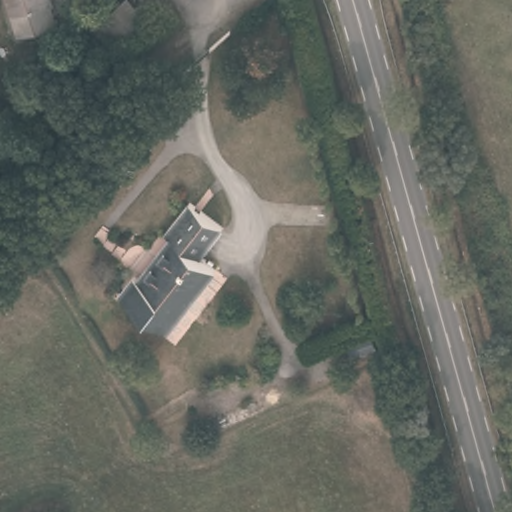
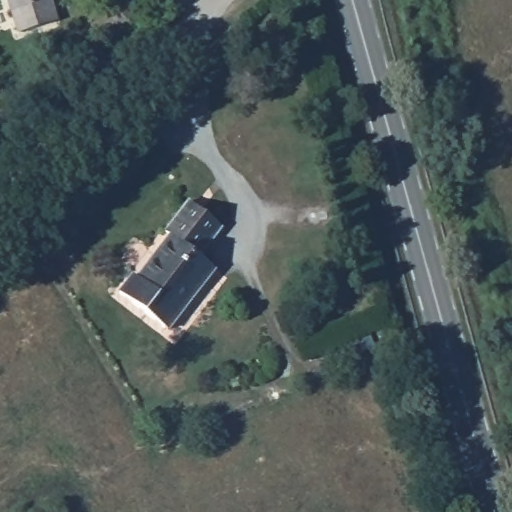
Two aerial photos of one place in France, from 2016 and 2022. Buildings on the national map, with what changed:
unchanged [(40,0),(49,26),(13,39),(1,0),(40,0)]
unchanged [(91,30),(124,1),(145,27),(116,50),(113,46),(106,49),(91,30)]
unchanged [(114,296),(129,276),(135,281),(168,239),(163,234),(187,204),(219,229),(197,258),(212,271),(160,333),(114,296)]

